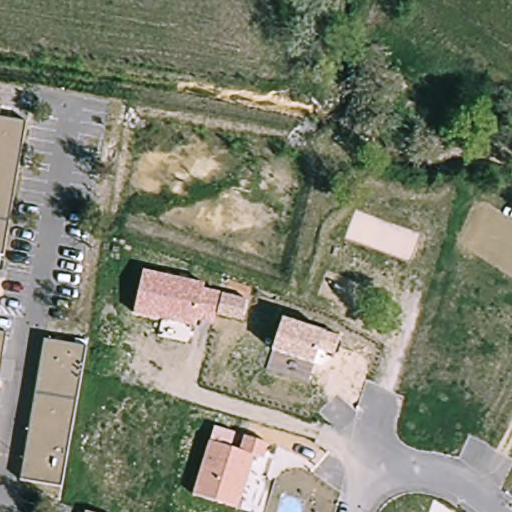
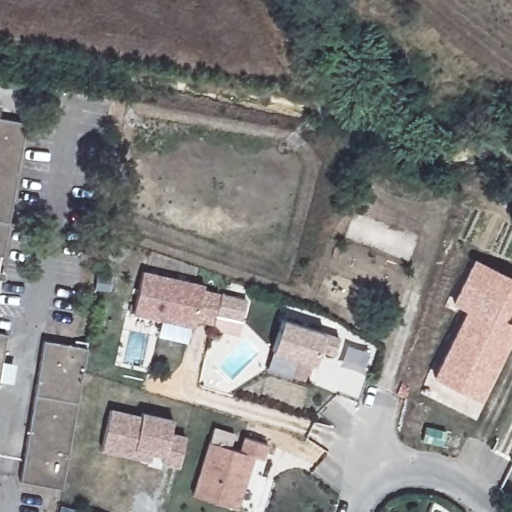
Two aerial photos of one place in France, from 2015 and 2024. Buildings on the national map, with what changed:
unchanged [(1,267),(0,267),(0,129),(24,133),(1,267)]
new [(475,258),(512,277),(512,295),(500,318),(512,324),(512,328),(479,397),(432,376),(467,308),(454,301),(475,258)]
unchanged [(203,290),(248,300),(244,320),(215,312),(213,321),(197,318),(195,327),(135,314),(146,271),(205,284),(203,290)]
unchanged [(328,330),(340,335),(334,355),(320,347),(315,364),(273,352),(283,319),(322,332),(328,330)]
unchanged [(38,372),(43,340),(84,347),(79,377),(38,372)]
unchanged [(0,370),(0,341),(5,341),(0,370)]
unchanged [(79,377),(62,488),(20,481),(38,372),(79,377)]
new [(128,452),(96,445),(105,406),(135,413),(136,409),(167,416),(164,430),(180,433),(173,463),(156,459),(158,451),(147,448),(145,456),(128,452)]
unchanged [(215,426),(237,432),(232,447),(241,451),(243,437),(268,445),(264,458),(253,455),(238,508),(194,495),(211,443),(215,426)]
unchanged [(87,511),(90,512),(87,512),(87,511)]

